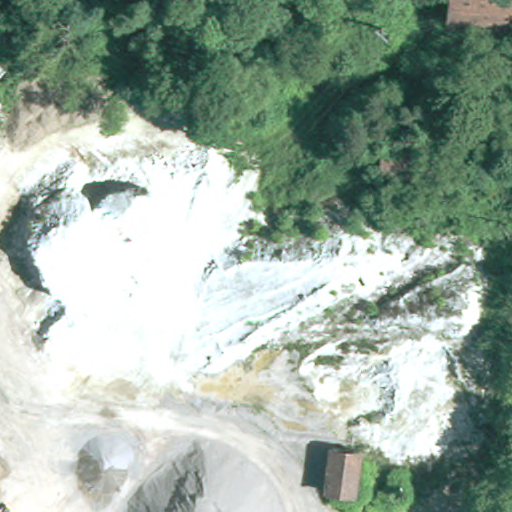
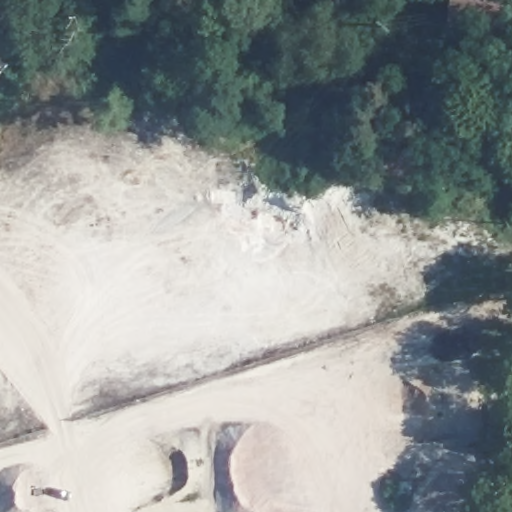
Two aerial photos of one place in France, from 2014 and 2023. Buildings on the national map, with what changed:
unchanged [(451,0),(512,0),(512,29),(448,20),(451,0)]
unchanged [(0,67),(0,55),(6,61),(0,67)]
unchanged [(416,144),(416,180),(379,175),(383,139),(416,144)]
demolished [(359,452),(353,495),(326,492),(332,448),(359,452)]

